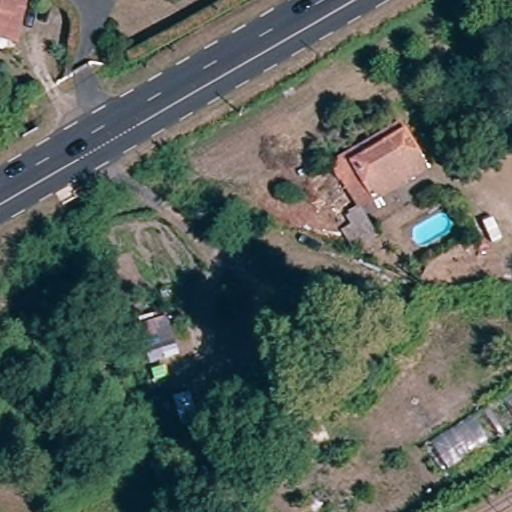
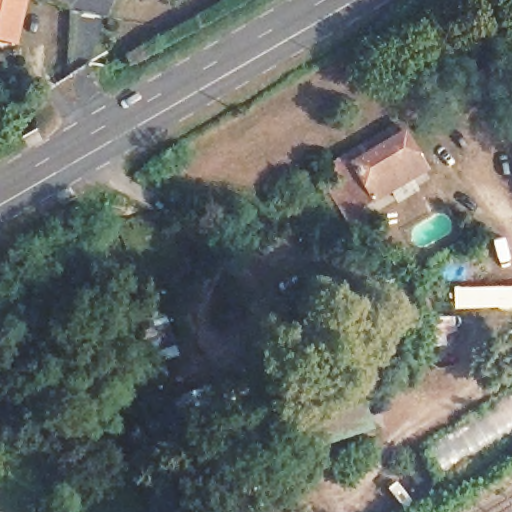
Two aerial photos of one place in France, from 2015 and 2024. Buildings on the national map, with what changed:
unchanged [(0,42),(0,0),(24,0),(15,46),(0,42)]
unchanged [(359,215),(339,181),(334,173),(385,141),(390,150),(395,160),(411,187),(359,215)]

